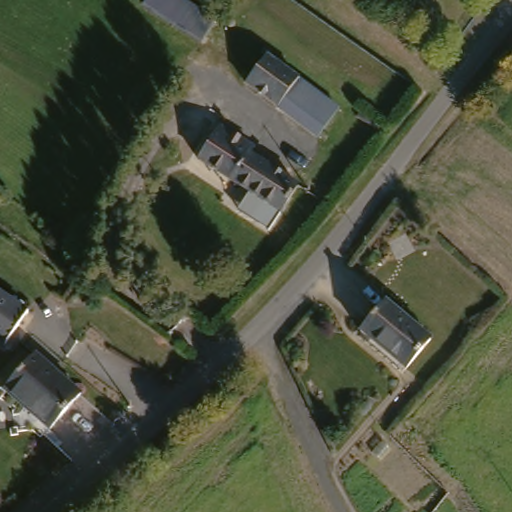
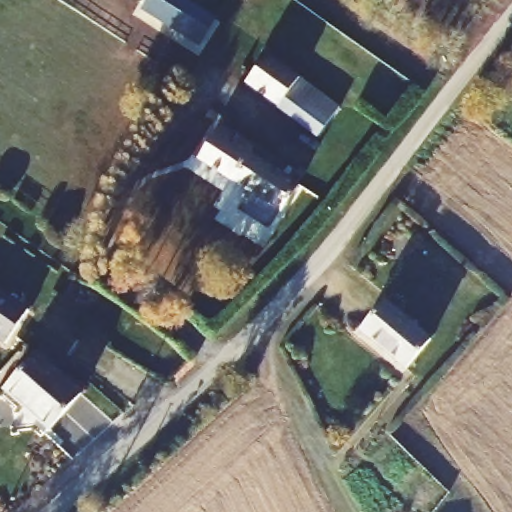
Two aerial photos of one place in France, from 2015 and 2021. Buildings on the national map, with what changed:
unchanged [(186,0),(214,19),(202,45),(145,10),(150,0),(186,0)]
unchanged [(279,109),(245,81),(266,55),(300,82),(279,109)]
unchanged [(339,115),(318,140),(279,109),(300,82),(339,115)]
unchanged [(224,130),(256,154),(251,161),(297,197),(279,220),(202,159),(224,130)]
unchanged [(28,311),(6,345),(0,341),(0,294),(28,311)]
unchanged [(409,375),(363,337),(389,307),(433,345),(409,375)]
unchanged [(36,358),(81,397),(49,434),(4,395),(36,358)]

